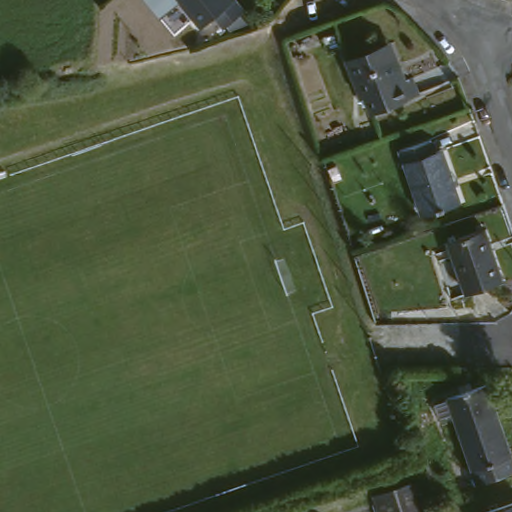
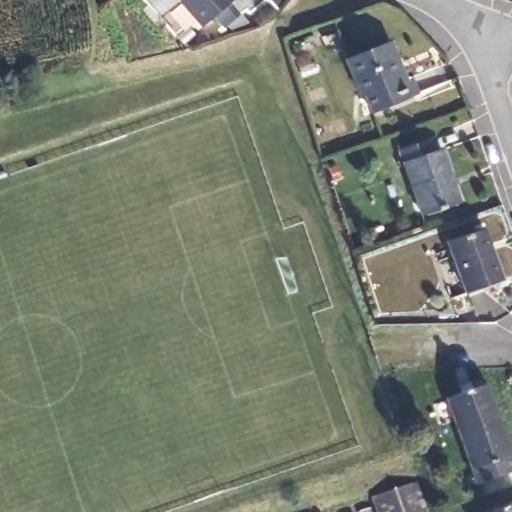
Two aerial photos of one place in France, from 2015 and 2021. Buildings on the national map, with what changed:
unchanged [(228,23),(219,12),(207,22),(188,0),(244,0),(249,5),(228,23)]
unchanged [(397,58),(402,55),(410,73),(417,70),(425,88),(412,93),(376,108),(353,54),(389,39),(397,58)]
unchanged [(439,147),(447,144),(465,198),(427,211),(404,145),(434,135),(439,147)]
unchanged [(512,276),(476,288),(457,237),(494,224),(512,274),(512,276)]
unchanged [(463,417),(451,422),(445,405),(457,401),(456,399),(471,394),(468,386),(479,382),(482,390),(496,385),(512,430),(512,476),(487,485),(463,417)]
unchanged [(421,477),(433,512),(384,512),(378,491),(421,477)]
unchanged [(486,509),(512,500),(512,512),(487,512),(486,509)]

